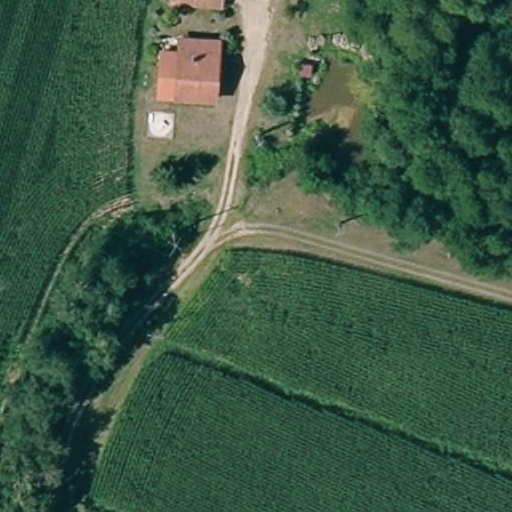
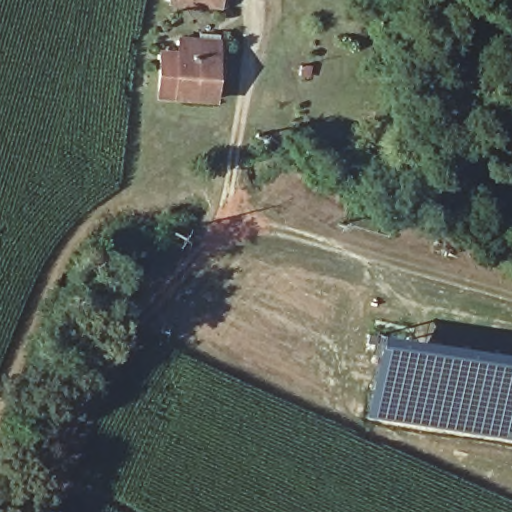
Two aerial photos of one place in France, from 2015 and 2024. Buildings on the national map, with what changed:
new [(179,5),(179,0),(223,0),(223,8),(179,5)]
new [(177,50),(177,35),(220,37),(217,104),(157,100),(160,47),(177,50)]
demolished [(196,57),(215,57),(212,101),(175,99),(178,40),(198,42),(196,57)]
new [(378,333),(456,344),(512,353),(512,442),(427,431),(365,420),(374,367),(378,333)]

